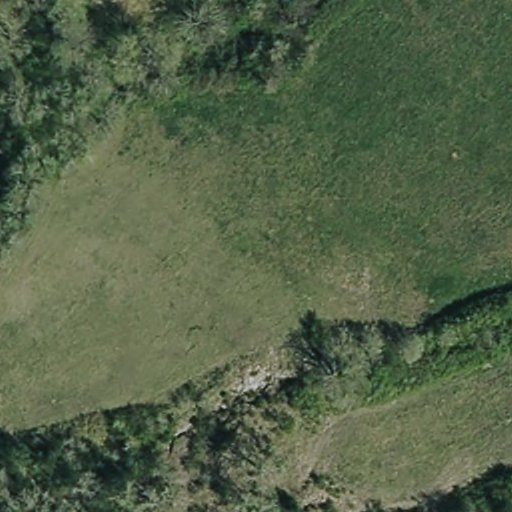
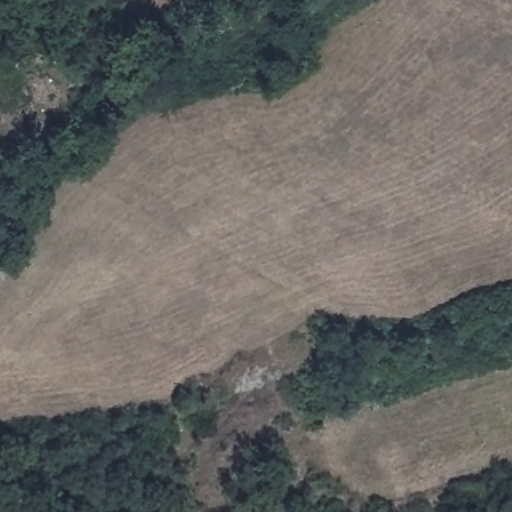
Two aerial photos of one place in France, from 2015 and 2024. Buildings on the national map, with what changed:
unchanged [(10,117),(0,116),(0,99),(11,99),(10,117)]

